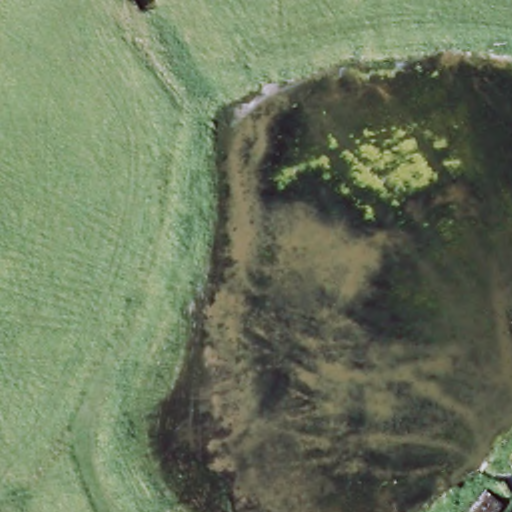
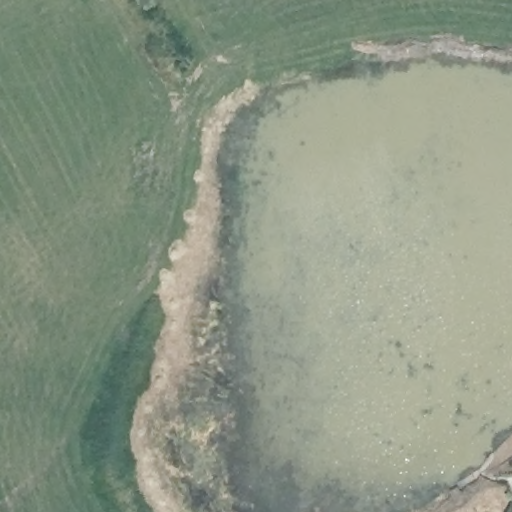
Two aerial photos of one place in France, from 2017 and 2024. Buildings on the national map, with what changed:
unchanged [(510,508),(507,512),(473,512),(487,493),(510,508)]

